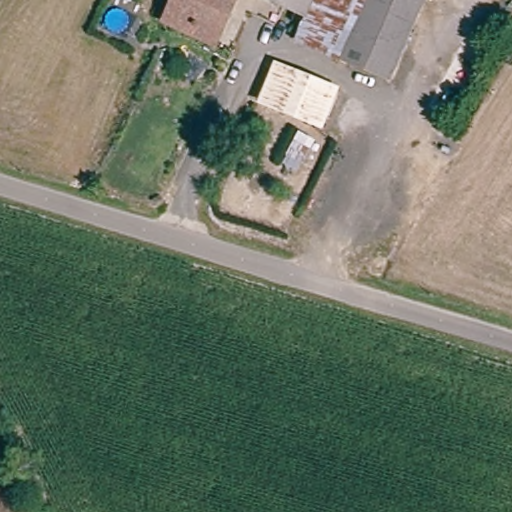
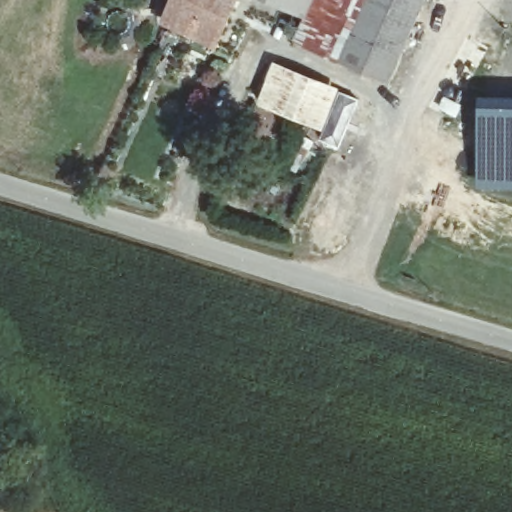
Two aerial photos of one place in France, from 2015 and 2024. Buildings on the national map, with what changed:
unchanged [(229,0),(217,28),(162,5),(164,0),(229,0)]
unchanged [(360,0),(341,51),(292,31),(289,27),(301,0),(360,0)]
unchanged [(341,51),(360,0),(418,0),(389,71),(341,51)]
unchanged [(271,54),(327,83),(306,123),(249,99),(271,54)]
new [(512,96),(512,189),(476,189),(479,94),(512,96)]

